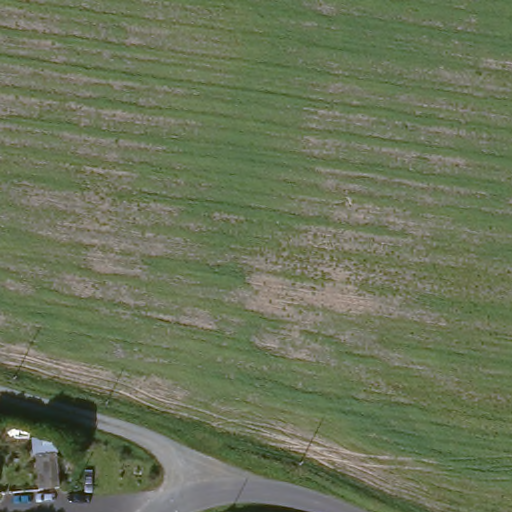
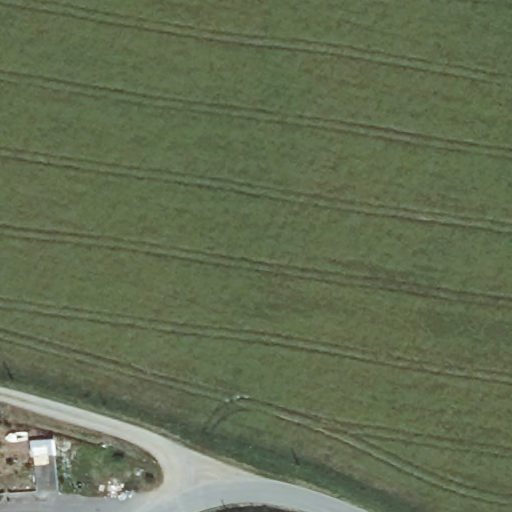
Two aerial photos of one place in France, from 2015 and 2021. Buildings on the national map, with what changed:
unchanged [(56,473),(34,475),(34,439),(54,439),(56,473)]

